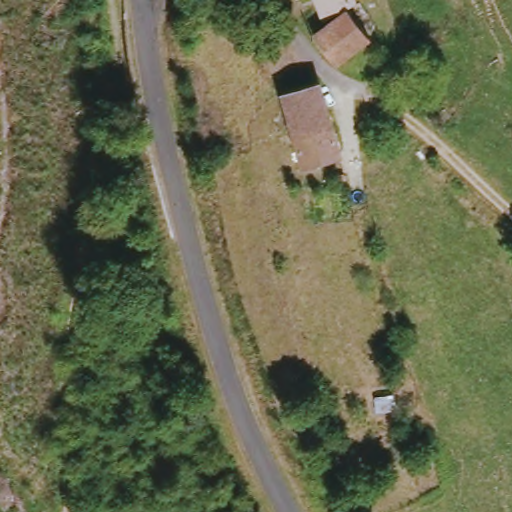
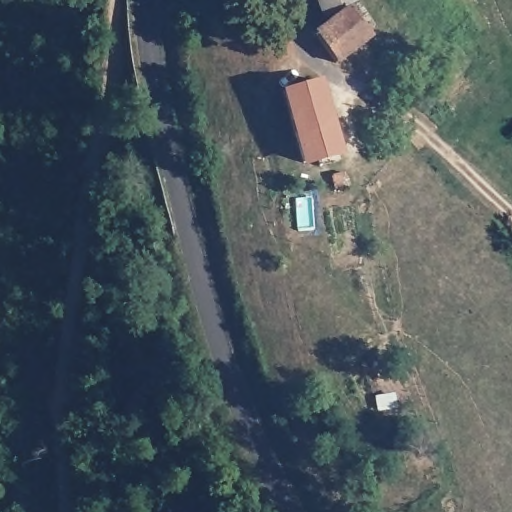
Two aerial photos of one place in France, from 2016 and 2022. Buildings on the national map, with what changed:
unchanged [(322,26),(312,0),(373,0),(345,8),(361,30),(327,57),(311,35),(322,26)]
unchanged [(299,166),(285,95),(319,86),(335,158),(299,166)]

